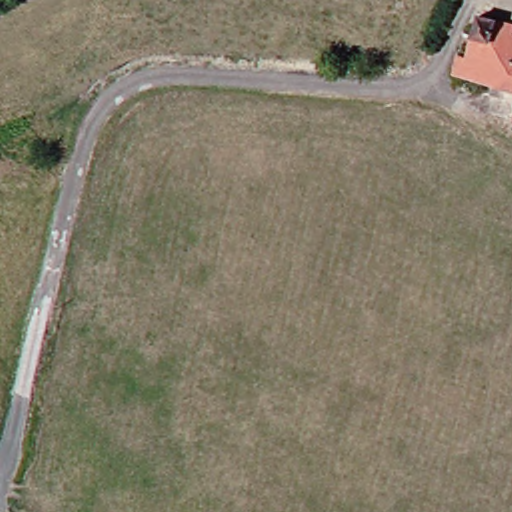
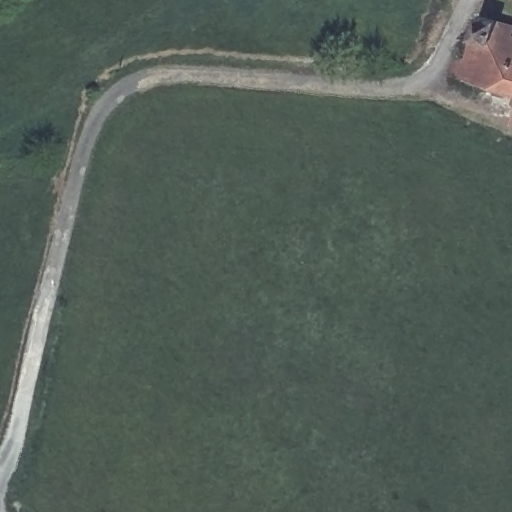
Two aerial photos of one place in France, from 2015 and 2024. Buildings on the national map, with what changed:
unchanged [(458,75),(464,55),(468,56),(485,2),(512,10),(512,90),(458,75)]

